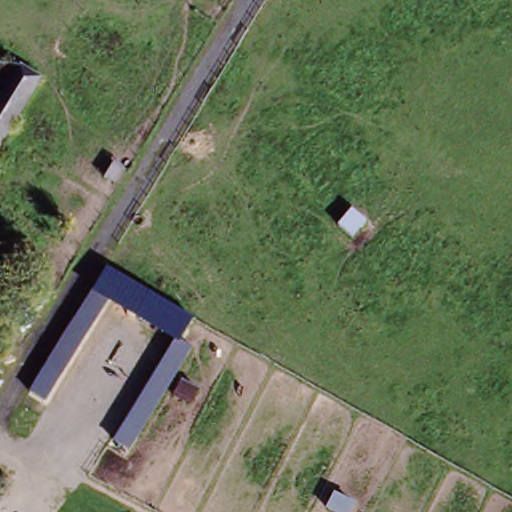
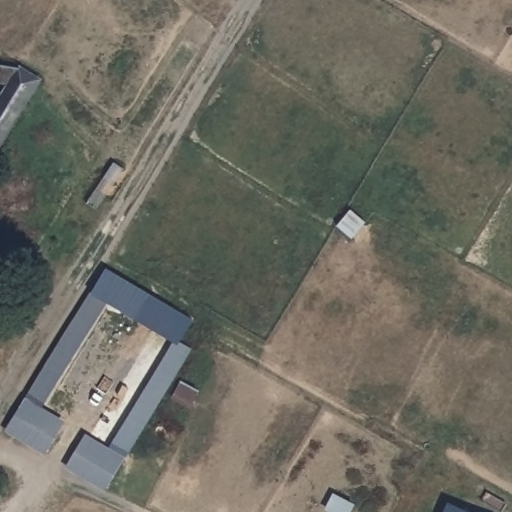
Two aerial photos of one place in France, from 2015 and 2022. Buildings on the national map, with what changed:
unchanged [(25,69),(45,83),(0,151),(0,102),(10,86),(0,84),(0,70),(20,75),(25,69)]
unchanged [(106,267),(195,318),(181,343),(193,349),(130,453),(113,442),(175,343),(108,302),(45,403),(29,392),(106,267)]
new [(180,379),(198,389),(190,404),(172,396),(180,379)]
new [(45,403),(44,407),(67,422),(45,457),(3,430),(29,392),(45,403)]
new [(109,446),(113,442),(130,453),(106,493),(65,467),(85,432),(109,446)]
new [(450,504),(468,512),(446,512),(450,504)]

